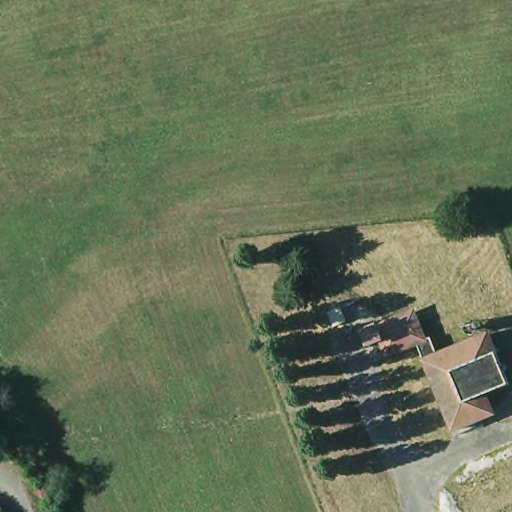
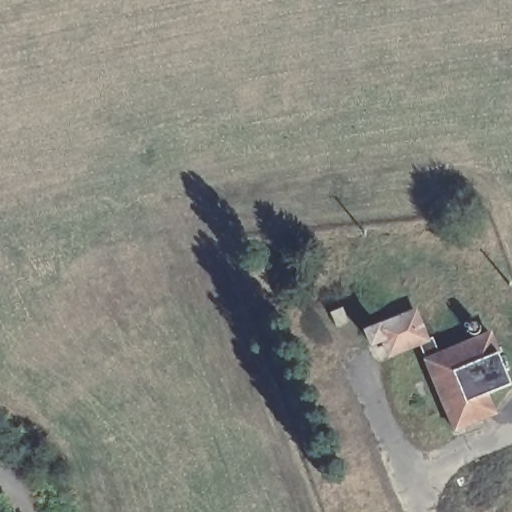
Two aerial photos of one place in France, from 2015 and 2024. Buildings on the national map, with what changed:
unchanged [(427,367),(419,349),(389,362),(382,346),(370,350),(365,337),(417,314),(420,319),(430,316),(437,334),(428,336),(430,344),(437,340),(444,359),(492,340),(497,354),(500,353),(510,376),(506,377),(512,393),(512,396),(490,405),(495,419),(475,428),(477,434),(458,441),(457,436),(427,367)]

